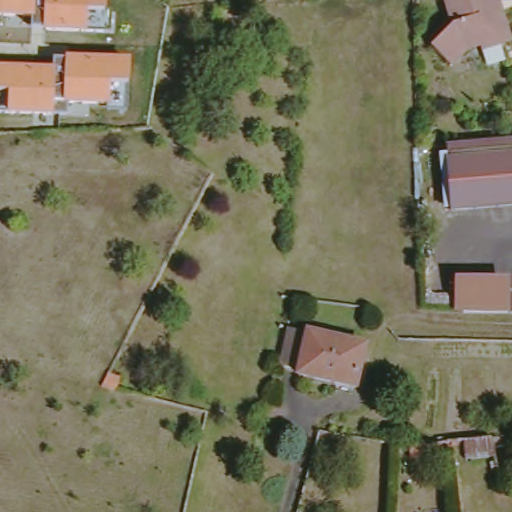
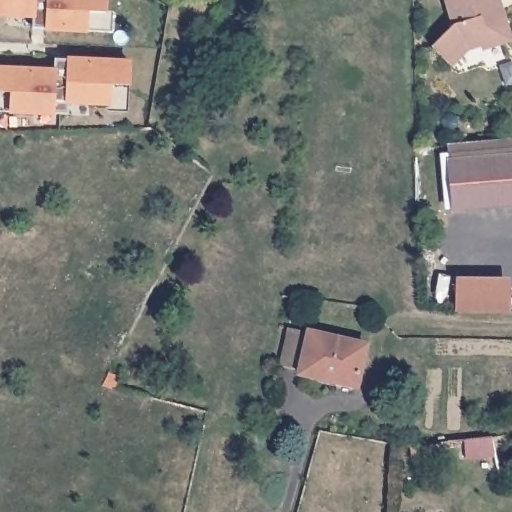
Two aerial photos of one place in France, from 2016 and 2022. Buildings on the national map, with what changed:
unchanged [(113,14),(112,34),(32,29),(32,17),(0,16),(0,0),(107,0),(107,14),(113,14)]
unchanged [(510,17),(512,26),(512,48),(490,53),(477,48),(454,69),(437,48),(460,29),(451,0),(497,0),(501,16),(510,17)]
unchanged [(54,71),(55,60),(65,60),(66,56),(131,61),(127,117),(108,116),(109,106),(68,104),(67,117),(8,114),(8,111),(0,111),(0,68),(54,71)]
unchanged [(512,208),(455,212),(451,146),(512,141),(512,208)]
unchanged [(462,280),(512,281),(512,312),(462,311),(462,280)]
unchanged [(301,335),(363,345),(357,388),(296,378),(301,335)]

